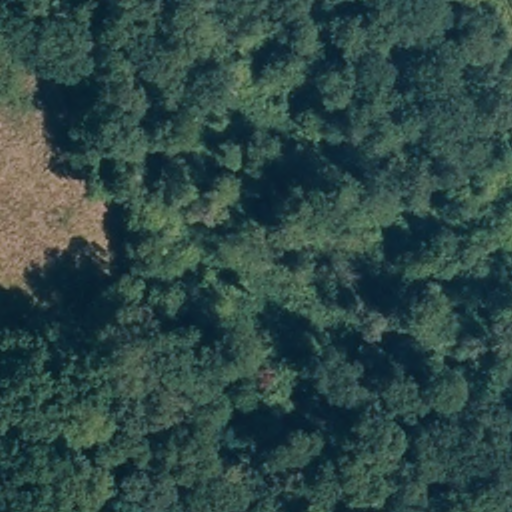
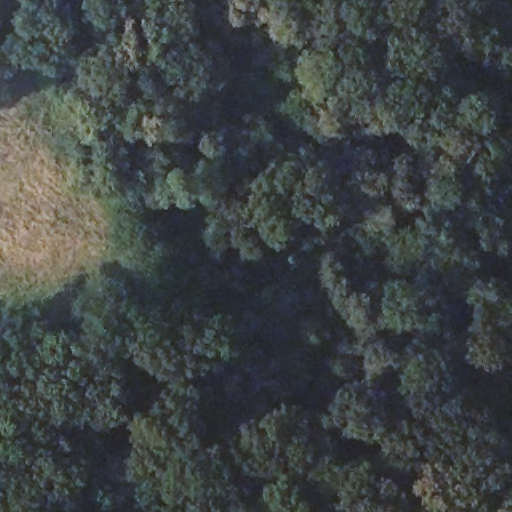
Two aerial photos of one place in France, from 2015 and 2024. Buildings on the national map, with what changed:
[]

